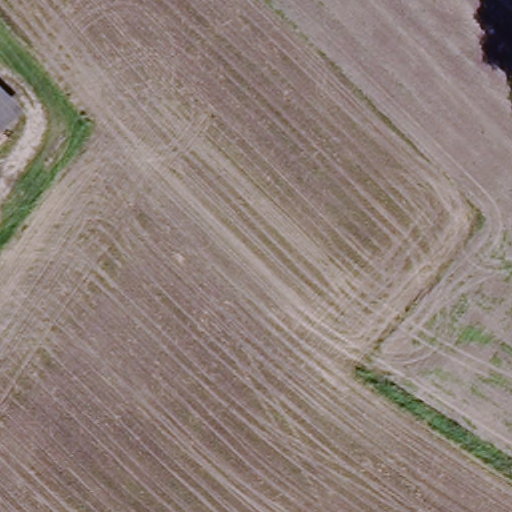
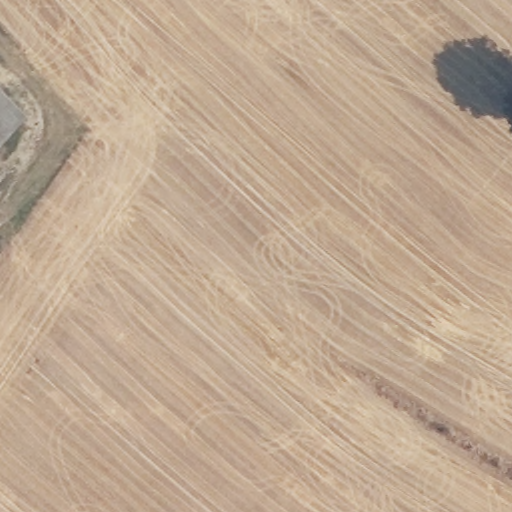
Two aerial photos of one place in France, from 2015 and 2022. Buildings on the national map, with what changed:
unchanged [(0,136),(0,93),(22,116),(0,136)]

